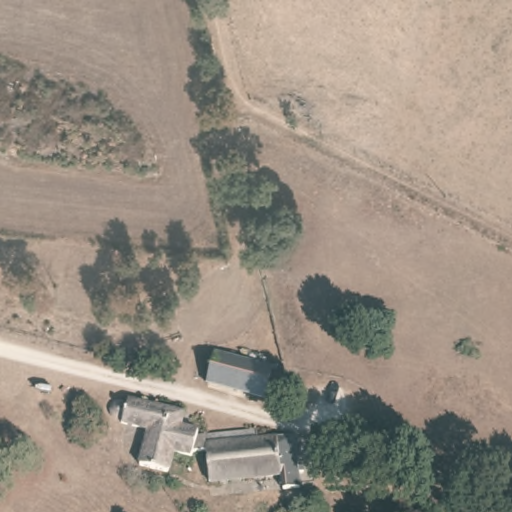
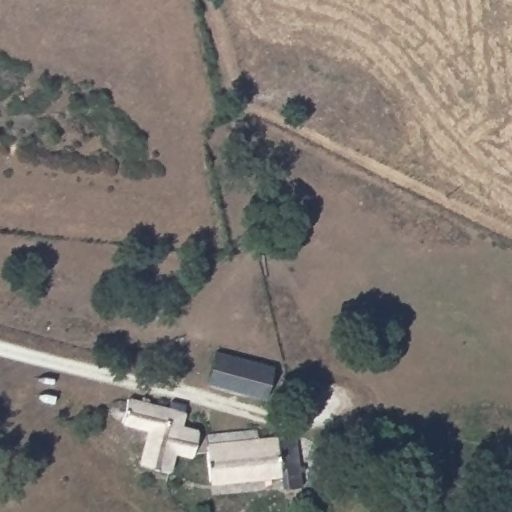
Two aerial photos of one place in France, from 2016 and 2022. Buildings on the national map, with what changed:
unchanged [(217,353),(273,369),(265,399),(208,384),(217,353)]
unchanged [(181,420),(198,425),(198,428),(256,423),(256,433),(282,436),(287,492),(271,491),(269,475),(211,489),(207,458),(194,458),(194,460),(174,458),(169,478),(140,470),(148,436),(121,428),(121,425),(118,423),(115,421),(113,417),(113,413),(114,410),(117,407),(121,406),(125,406),(127,407),(127,405),(184,405),(181,420)]

